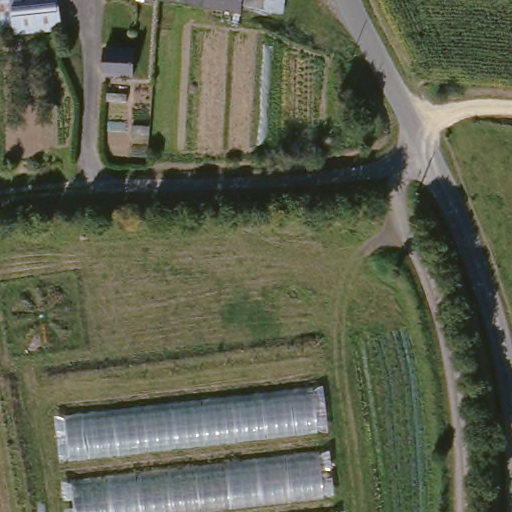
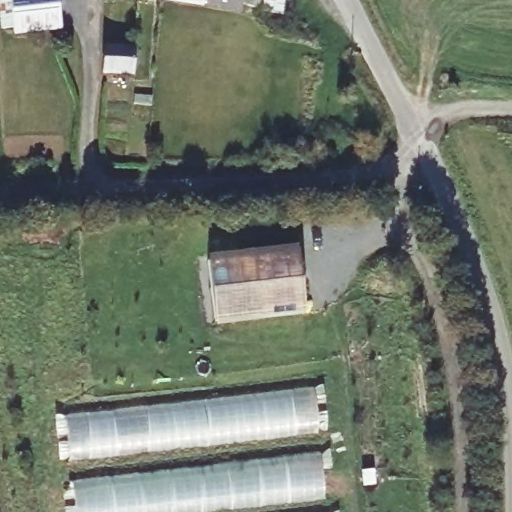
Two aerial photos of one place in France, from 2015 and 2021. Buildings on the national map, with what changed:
unchanged [(6,0),(56,0),(57,27),(8,28),(6,0)]
unchanged [(265,15),(242,11),(242,12),(240,18),(167,0),(267,0),(265,15)]
unchanged [(98,49),(130,52),(129,61),(134,61),(138,62),(141,65),(142,67),(142,70),(141,72),(139,74),(136,75),(134,75),(129,75),(129,80),(96,77),(98,49)]
new [(303,316),(215,326),(209,261),(298,252),(303,316)]
unchanged [(328,431),(62,462),(56,422),(322,391),(328,431)]
unchanged [(333,512),(70,512),(67,485),(327,459),(333,512)]

